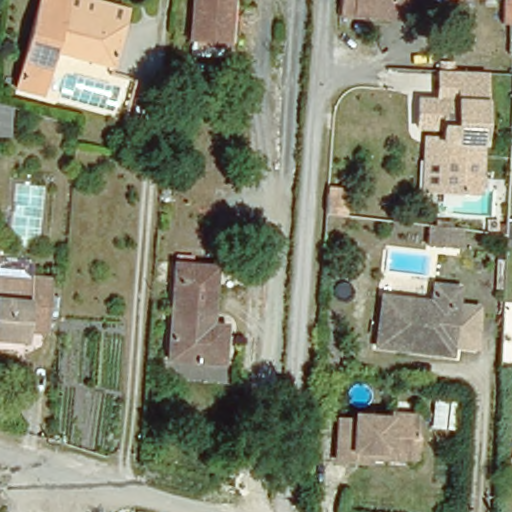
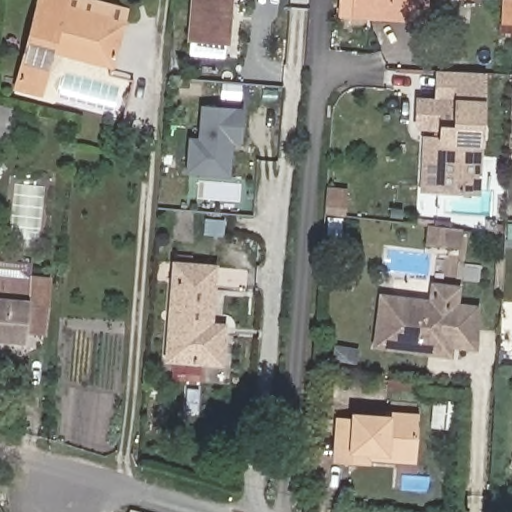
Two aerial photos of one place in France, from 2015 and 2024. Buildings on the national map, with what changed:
unchanged [(17,69),(36,0),(111,0),(124,4),(109,62),(47,46),(40,74),(37,86),(15,80),(17,69)]
unchanged [(192,57),(196,0),(232,0),(227,60),(192,57)]
unchanged [(432,0),(431,20),(345,14),(346,0),(432,0)]
unchanged [(436,104),(437,75),(482,77),(481,107),(436,104)]
unchanged [(436,104),(481,107),(476,196),(437,194),(441,142),(441,131),(417,130),(418,102),(436,104)]
unchanged [(9,136),(0,135),(0,103),(12,107),(9,136)]
new [(232,145),(231,178),(187,175),(190,137),(199,138),(201,106),(246,109),(242,145),(232,145)]
unchanged [(437,194),(418,192),(422,138),(441,142),(437,194)]
unchanged [(326,194),(326,192),(347,195),(345,211),(325,209),(326,194)]
unchanged [(462,245),(456,244),(431,241),(433,221),(458,224),(464,225),(462,245)]
unchanged [(0,227),(0,222),(1,222),(0,227)]
unchanged [(224,334),(222,358),(169,353),(175,260),(217,262),(212,318),(225,320),(224,334)]
unchanged [(26,338),(0,336),(0,265),(51,271),(47,313),(46,325),(27,322),(26,338)]
unchanged [(406,347),(372,343),(378,294),(427,301),(431,283),(455,287),(448,342),(447,353),(406,347)]
unchanged [(480,306),(478,350),(447,347),(448,342),(453,303),(480,306)]
unchanged [(371,452),(370,456),(355,455),(337,453),(341,413),(356,415),(356,409),(391,412),(391,408),(417,410),(416,444),(415,455),(371,452)]

